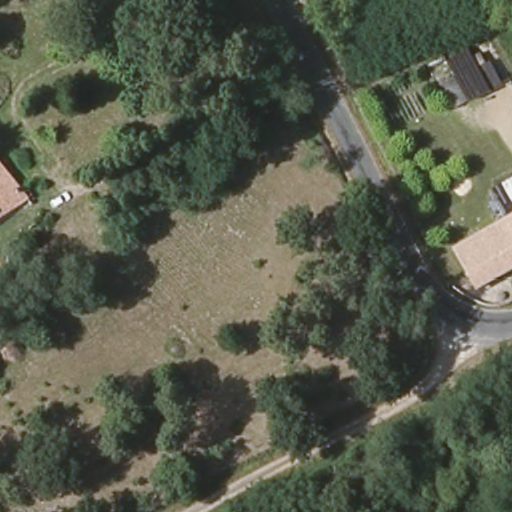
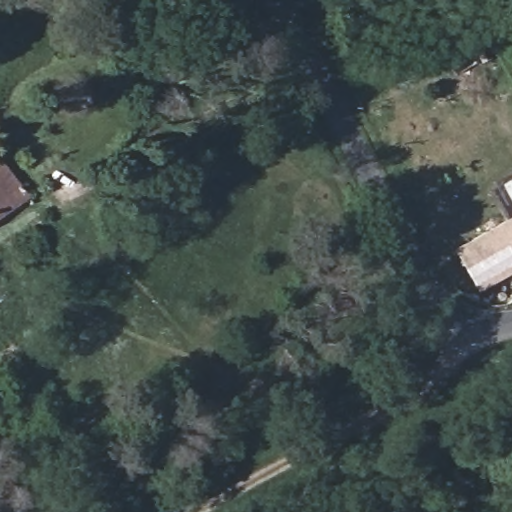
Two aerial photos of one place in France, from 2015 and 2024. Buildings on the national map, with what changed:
unchanged [(28,197),(0,215),(0,164),(28,197)]
unchanged [(492,190),(512,179),(512,271),(478,293),(452,244),(504,215),(492,190)]

